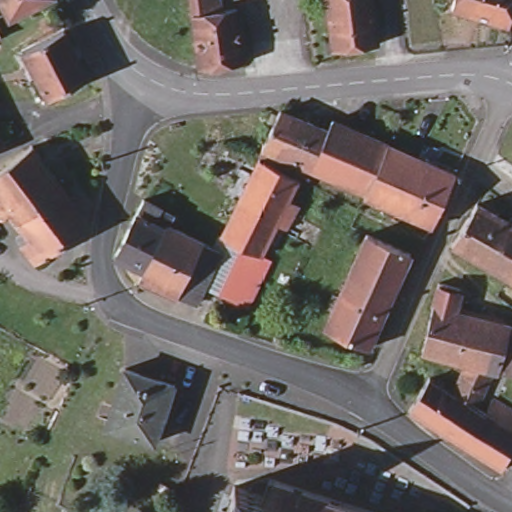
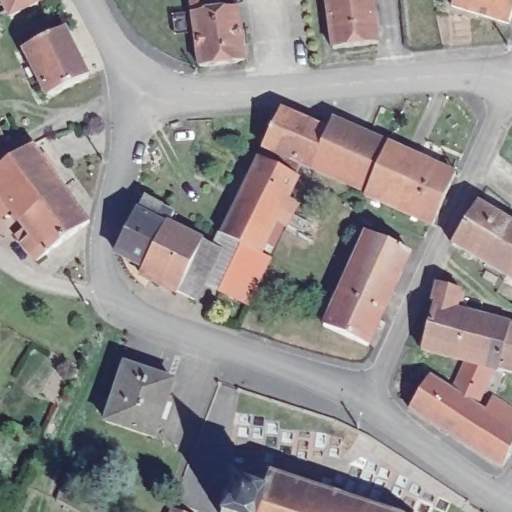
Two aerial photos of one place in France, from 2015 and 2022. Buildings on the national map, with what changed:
unchanged [(14,12),(7,0),(40,0),(14,12)]
unchanged [(212,1),(192,3),(191,0),(211,0),(212,1)]
unchanged [(212,1),(220,0),(237,0),(243,52),(199,58),(192,3),(212,1)]
unchanged [(376,29),(332,34),(328,0),(373,0),(376,29)]
unchanged [(450,7),(453,0),(512,0),(512,12),(508,26),(450,7)]
unchanged [(63,31),(88,77),(47,96),(22,50),(63,31)]
unchanged [(286,223),(277,218),(263,247),(262,250),(221,230),(222,227),(244,182),(259,154),(263,144),(261,143),(279,106),(287,109),(327,126),(309,164),(301,161),(295,172),(298,173),(287,196),(298,201),(286,223)]
unchanged [(332,116),(387,140),(365,193),(364,192),(365,189),(309,164),(327,126),(332,116)]
unchanged [(426,157),(402,208),(365,193),(387,140),(426,157)]
unchanged [(64,188),(17,222),(10,212),(2,217),(0,216),(0,167),(30,144),(64,188)]
unchanged [(454,170),(455,170),(432,222),(430,221),(402,208),(426,157),(454,170)]
unchanged [(87,219),(88,221),(37,261),(15,236),(24,229),(17,222),(64,188),(87,219)]
unchanged [(177,288),(140,270),(144,262),(122,252),(116,249),(137,208),(144,194),(162,202),(173,209),(168,219),(202,236),(177,288)]
unchanged [(477,199),(512,220),(512,262),(506,271),(455,241),(450,239),(467,215),(477,199)]
unchanged [(218,244),(215,242),(221,230),(262,250),(274,255),(248,306),(199,283),(218,244)]
unchanged [(410,253),(383,312),(340,292),(366,234),(410,253)]
unchanged [(215,242),(218,244),(199,283),(193,296),(177,288),(202,236),(215,242)]
unchanged [(512,262),(512,275),(506,271),(512,262)]
unchanged [(452,359),(421,351),(433,305),(439,282),(460,288),(460,289),(460,293),(464,294),(459,312),(465,313),(452,359)]
unchanged [(383,312),(367,347),(325,327),(340,292),(383,312)]
unchanged [(429,377),(454,392),(466,362),(452,359),(465,313),(504,324),(512,328),(512,374),(492,370),(475,406),(485,412),(492,398),(512,410),(512,444),(502,468),(427,422),(408,409),(410,407),(429,377)]
unchanged [(165,380),(174,382),(168,399),(155,439),(107,422),(126,366),(131,368),(165,380)]
unchanged [(270,475),(381,512),(256,512),(264,492),(270,475)]
unchanged [(256,512),(224,512),(234,483),(264,492),(256,512)]

